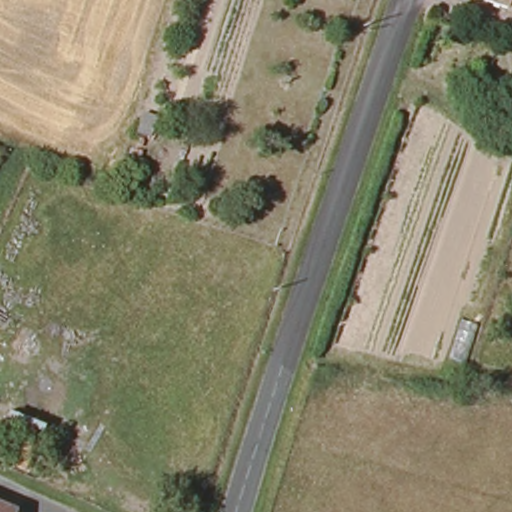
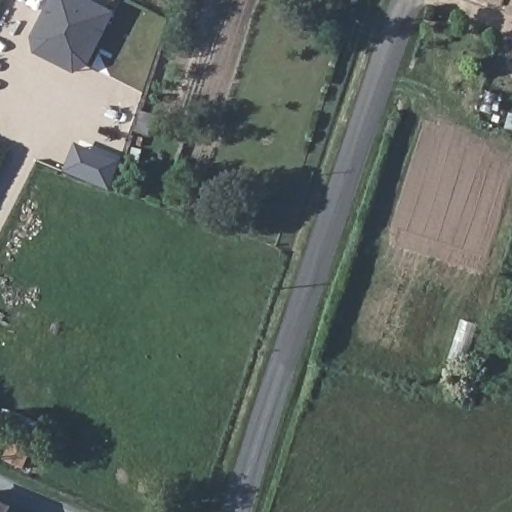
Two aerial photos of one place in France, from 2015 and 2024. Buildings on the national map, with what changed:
new [(77,0),(109,17),(85,67),(84,68),(70,74),(32,55),(30,40),(50,0),(77,0)]
unchanged [(478,0),(512,0),(512,12),(478,0)]

